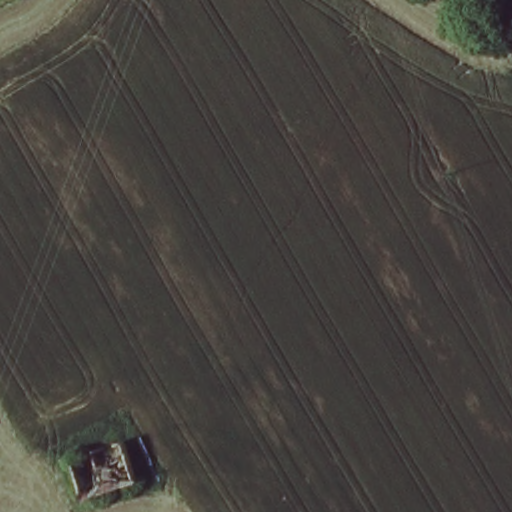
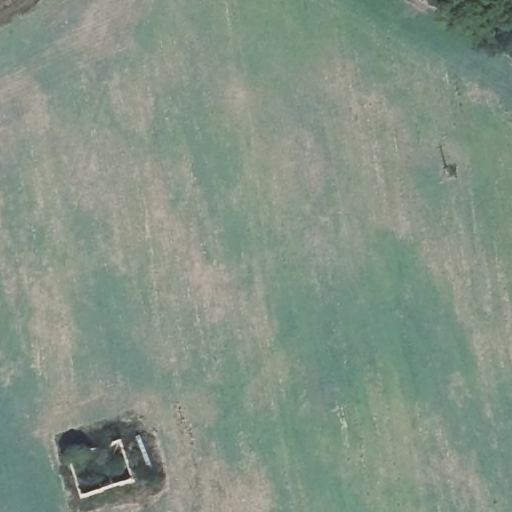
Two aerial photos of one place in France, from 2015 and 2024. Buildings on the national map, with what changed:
unchanged [(109,431),(135,484),(93,504),(67,452),(109,431)]

